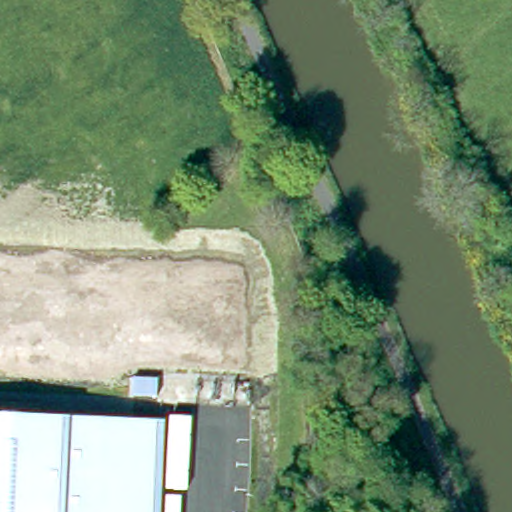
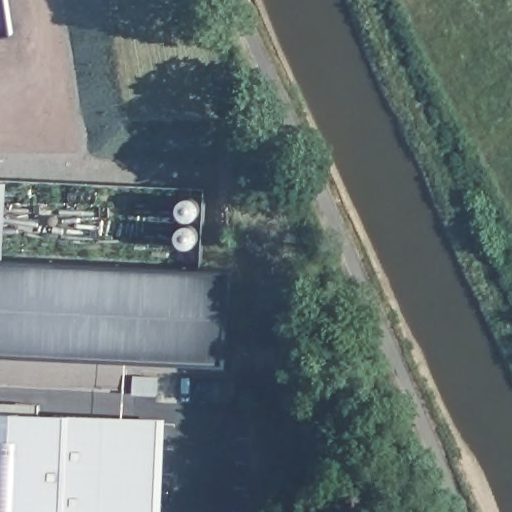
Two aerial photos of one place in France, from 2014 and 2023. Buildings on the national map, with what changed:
new [(11,35),(0,36),(0,0),(6,0),(11,35)]
new [(229,271),(223,365),(0,353),(0,260),(229,271)]
unchanged [(161,512),(0,512),(0,412),(164,420),(161,512)]

